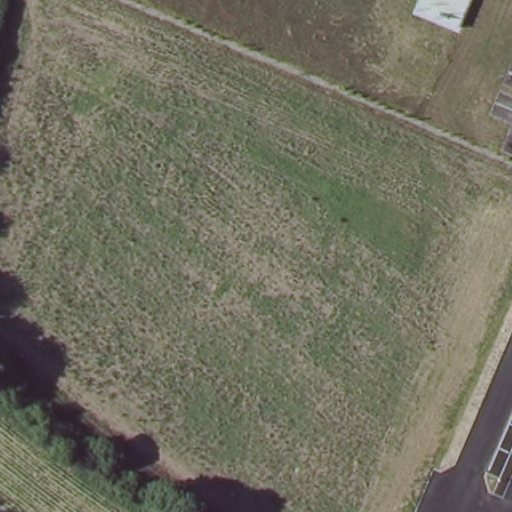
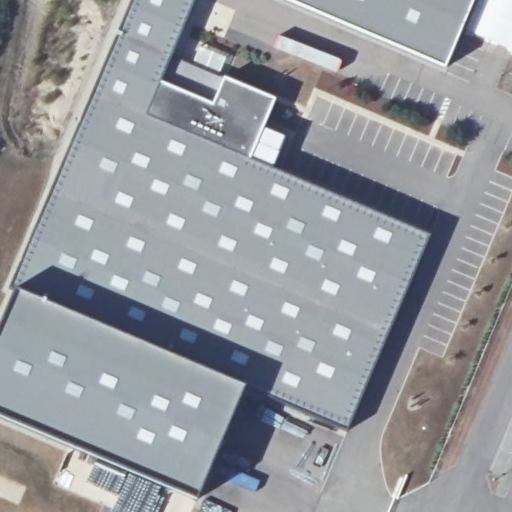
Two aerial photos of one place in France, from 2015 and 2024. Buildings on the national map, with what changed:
new [(0,420),(0,321),(14,289),(133,0),(193,0),(170,57),(223,79),(273,101),(263,127),(287,137),(274,171),(429,236),(348,430),(242,388),(195,502),(0,420)]
new [(446,69),(282,0),(474,0),(446,69)]
new [(474,0),(512,0),(512,50),(463,28),(474,0)]

